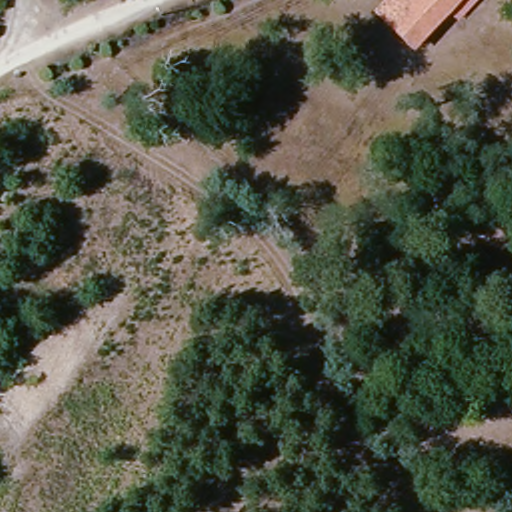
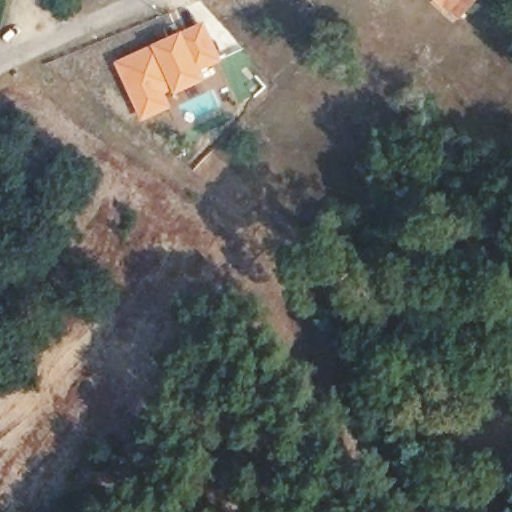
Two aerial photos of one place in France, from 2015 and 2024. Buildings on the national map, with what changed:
demolished [(380,31),(395,16),(410,0),(460,0),(441,21),(408,57),(380,31)]
new [(458,22),(435,0),(479,0),(458,22)]
new [(204,22),(221,62),(201,72),(205,80),(167,97),(172,108),(140,122),(114,61),(204,22)]

